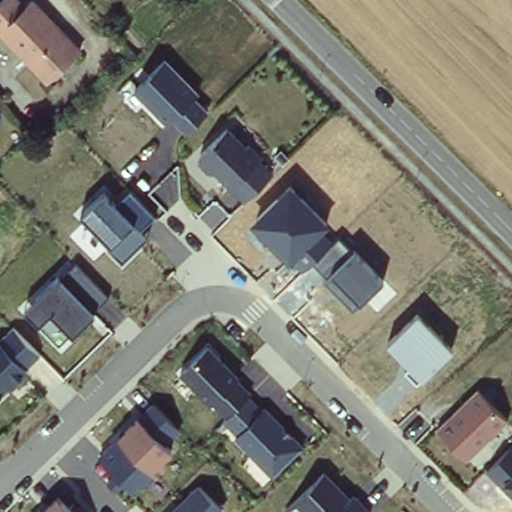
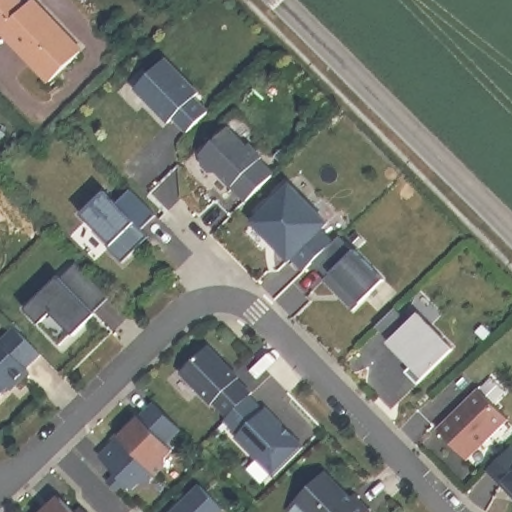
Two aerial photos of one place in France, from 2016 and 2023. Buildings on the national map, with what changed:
unchanged [(3,0),(10,0),(21,13),(32,3),(78,54),(46,87),(6,46),(0,41),(0,3),(3,0)]
unchanged [(184,132),(169,116),(165,120),(133,86),(166,56),(199,90),(194,96),(207,109),(184,132)]
unchanged [(230,126),(245,143),(249,142),(274,172),(242,199),(214,169),(209,170),(200,164),(200,152),(230,126)]
unchanged [(361,301),(352,308),(322,276),(327,273),(312,259),(301,268),(291,258),(287,261),(249,223),(289,181),(329,223),(323,229),(334,240),(340,235),(354,247),(386,279),(361,301)]
unchanged [(103,190),(118,204),(131,189),(154,212),(140,225),(148,235),(122,259),(81,211),(103,190)]
unchanged [(59,277),(75,264),(107,298),(90,314),(75,330),(59,342),(40,322),(26,307),(59,277)]
unchanged [(424,379),(418,383),(404,369),(409,364),(385,341),(419,311),(453,347),(424,379)]
unchanged [(12,326),(40,354),(27,364),(31,369),(11,391),(3,387),(0,391),(0,338),(12,326)]
unchanged [(210,344),(240,373),(237,375),(266,404),(303,444),(272,474),(235,437),(239,432),(223,417),(225,416),(211,399),(209,402),(179,373),(210,344)]
unchanged [(478,386),(508,417),(468,455),(436,426),(478,386)]
unchanged [(164,444),(173,453),(165,462),(164,470),(149,482),(136,487),(101,450),(140,413),(153,399),(181,427),(164,444)]
unchanged [(512,445),(512,493),(485,466),(512,445)]
unchanged [(352,495),(356,493),(372,509),(370,512),(289,512),(286,509),(295,498),(325,470),(352,495)]
unchanged [(170,512),(198,484),(223,510),(221,512),(170,512)]
unchanged [(56,492),(75,512),(36,512),(37,511),(56,492)]

